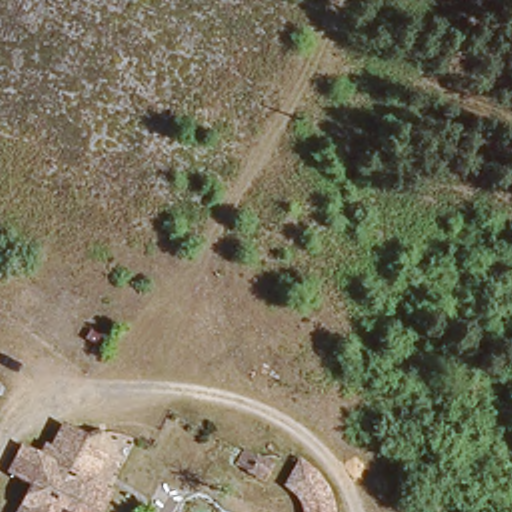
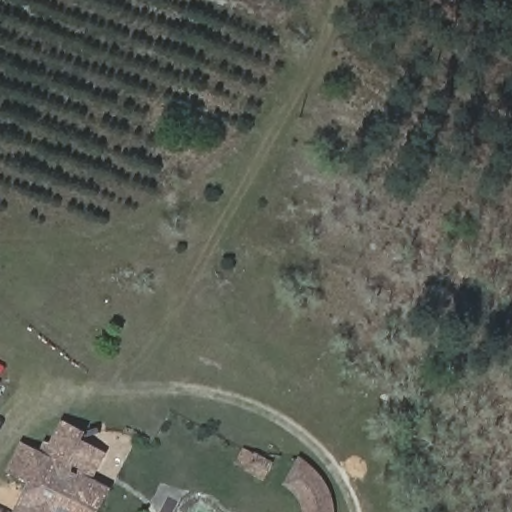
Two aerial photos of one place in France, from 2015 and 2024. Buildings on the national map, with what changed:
unchanged [(3,380),(0,386),(0,379),(3,380)]
unchanged [(102,512),(14,512),(30,480),(9,470),(23,440),(46,451),(64,416),(113,446),(97,476),(116,485),(102,512)]
unchanged [(263,480),(237,468),(242,449),(256,452),(273,462),(263,480)]
unchanged [(309,463),(322,476),(328,484),(333,497),(335,508),(335,512),(304,512),(304,507),(298,495),(288,486),(282,481),(299,456),(309,463)]

